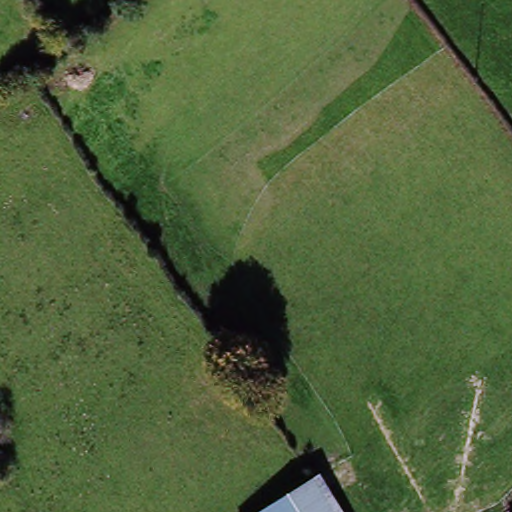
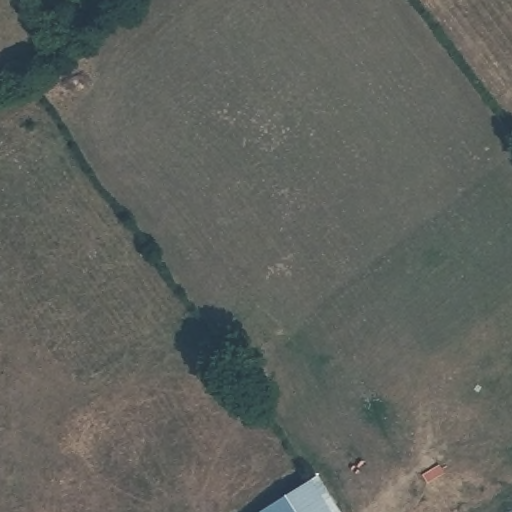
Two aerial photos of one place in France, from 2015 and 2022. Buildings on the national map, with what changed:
unchanged [(317,480),(337,512),(298,512),(290,498),(317,480)]
unchanged [(298,512),(267,512),(290,498),(298,512)]

